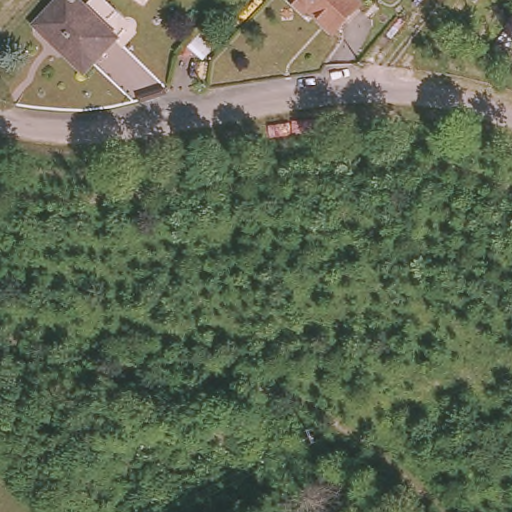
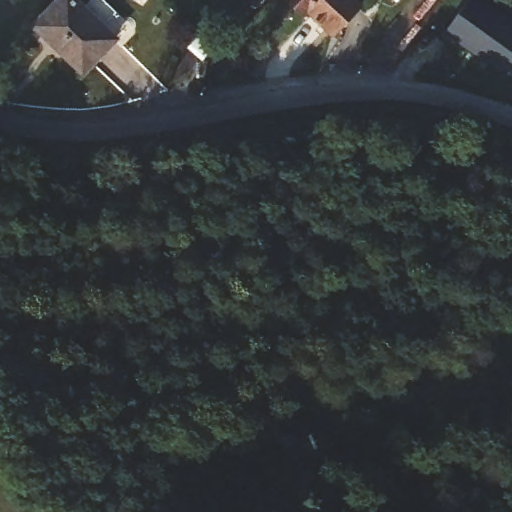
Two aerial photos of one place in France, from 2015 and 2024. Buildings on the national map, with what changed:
unchanged [(39,25),(66,0),(83,0),(90,7),(56,42),(39,25)]
unchanged [(341,35),(314,13),(312,16),(292,0),(362,0),(368,5),(341,35)]
new [(480,0),(512,23),(512,73),(509,77),(445,32),(469,0),(480,0)]
unchanged [(122,39),(88,73),(56,42),(90,7),(122,39)]

